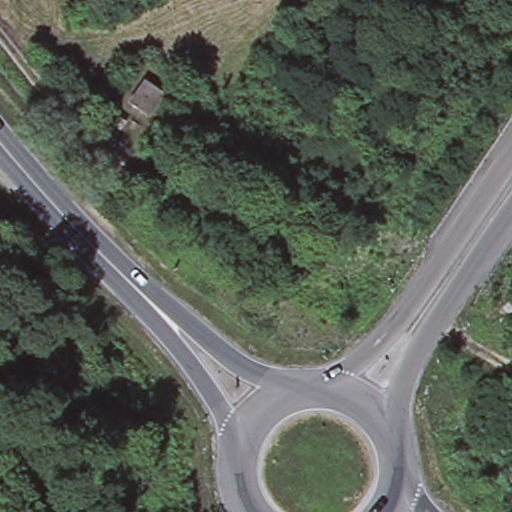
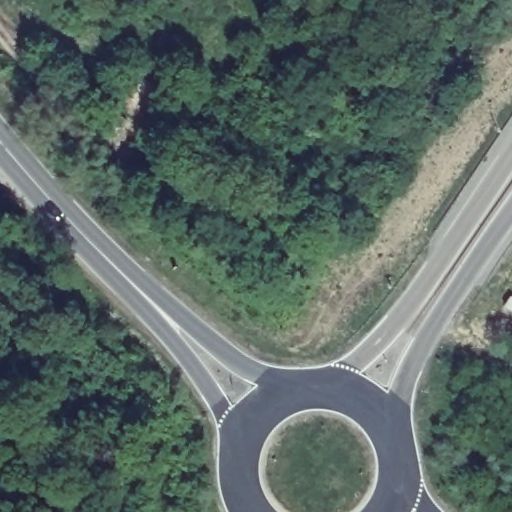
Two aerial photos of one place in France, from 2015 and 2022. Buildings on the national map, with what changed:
unchanged [(160,70),(177,82),(162,102),(145,89),(160,70)]
unchanged [(138,87),(130,100),(117,92),(125,79),(130,82),(138,87)]
unchanged [(138,109),(134,115),(120,107),(123,100),(138,109)]

